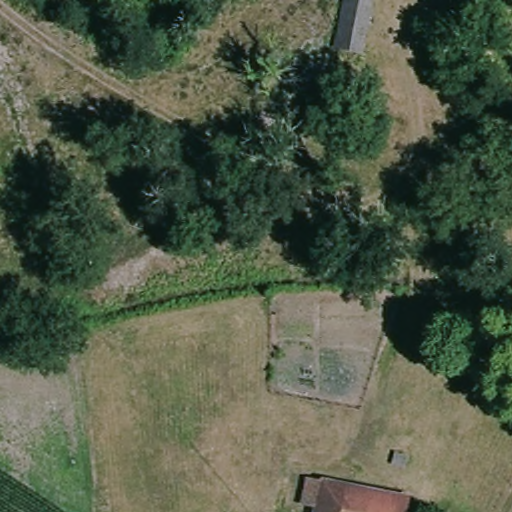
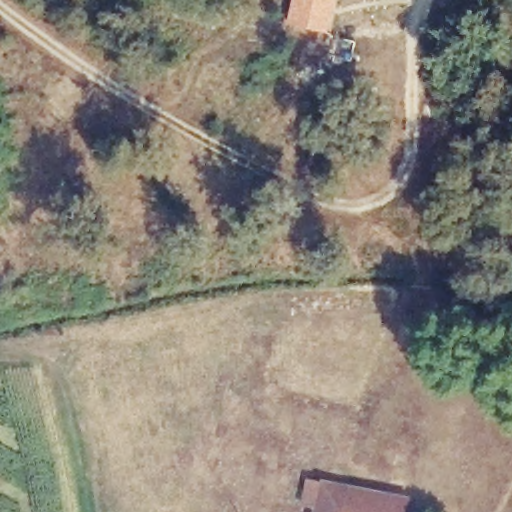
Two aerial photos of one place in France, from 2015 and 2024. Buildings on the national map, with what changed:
new [(289,0),(335,0),(328,33),(283,24),(289,0)]
unchanged [(363,54),(335,47),(345,0),(375,0),(363,54)]
unchanged [(302,498),(307,478),(323,482),(323,481),(408,499),(406,512),(316,512),(318,502),(302,498)]

